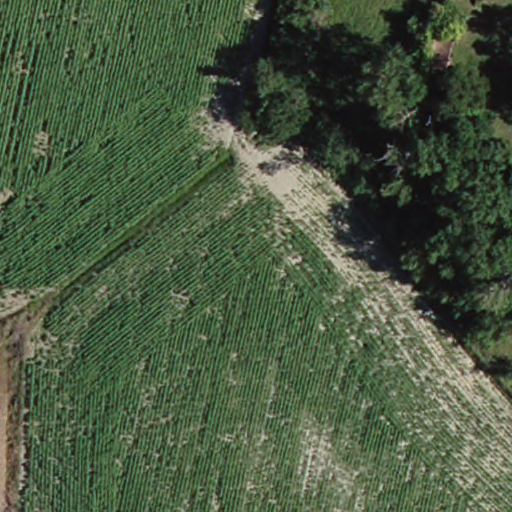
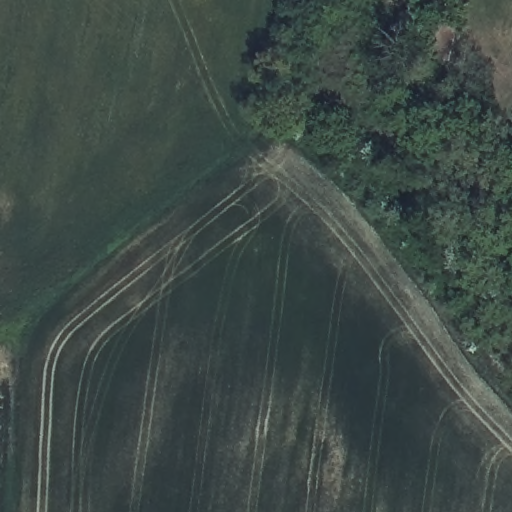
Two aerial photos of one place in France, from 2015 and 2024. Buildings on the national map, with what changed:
unchanged [(450,77),(430,70),(441,39),(451,42),(458,44),(455,61),(450,77)]

